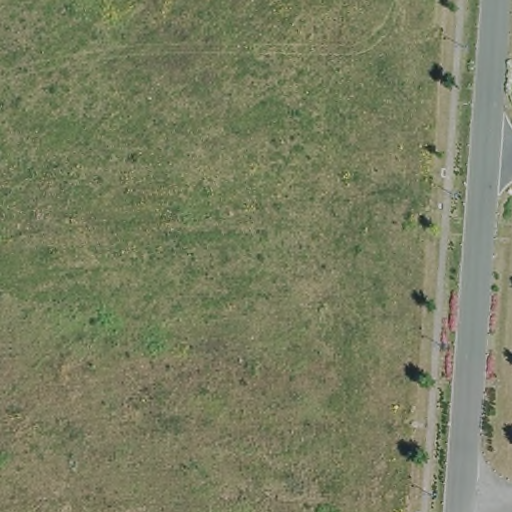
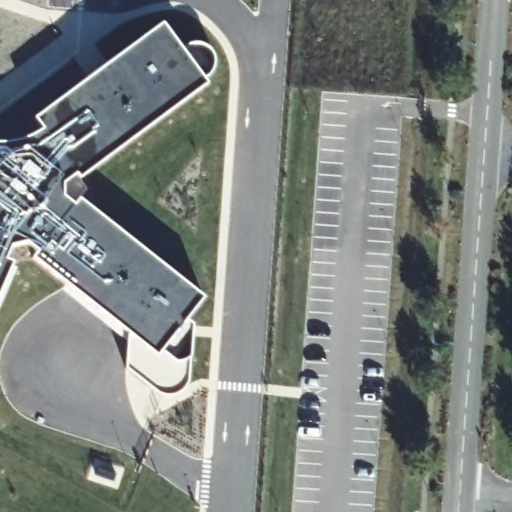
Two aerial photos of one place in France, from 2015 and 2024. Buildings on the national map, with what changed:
new [(43,130),(34,118),(163,23),(208,84),(79,178),(86,190),(79,199),(205,296),(186,318),(194,325),(190,356),(189,370),(187,384),(182,390),(176,394),(170,396),(162,395),(152,390),(126,368),(129,331),(32,258),(38,251),(27,242),(11,245),(5,260),(12,262),(0,290),(0,144),(25,139),(43,130)]

